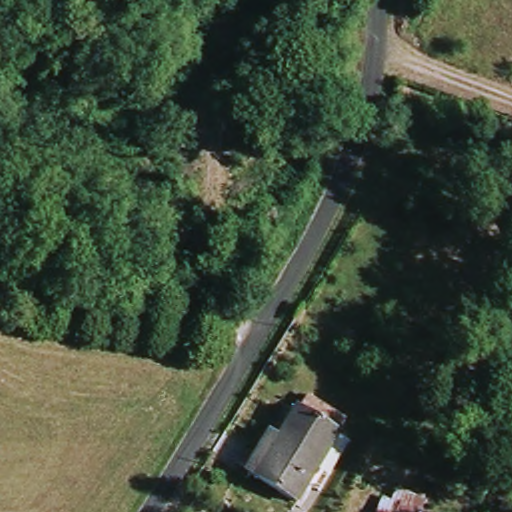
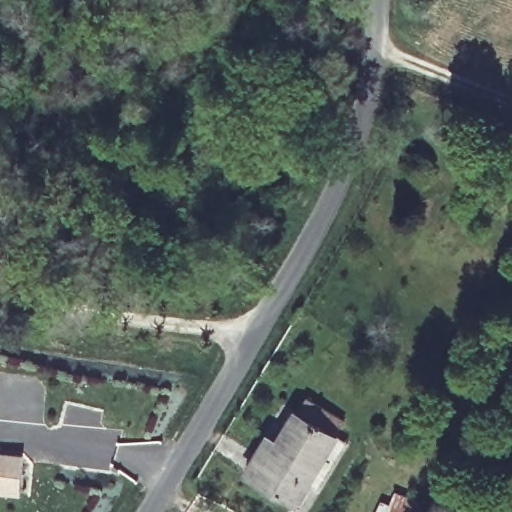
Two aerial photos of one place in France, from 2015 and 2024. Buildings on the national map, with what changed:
unchanged [(336,436),(342,439),(296,509),(242,477),(267,435),(276,439),(293,413),(310,399),(346,422),(336,436)]
new [(20,491),(0,490),(0,452),(23,454),(20,491)]
unchanged [(376,512),(380,504),(396,512),(376,512)]

